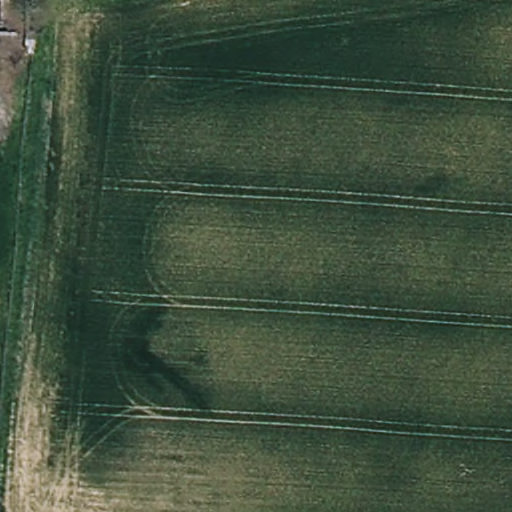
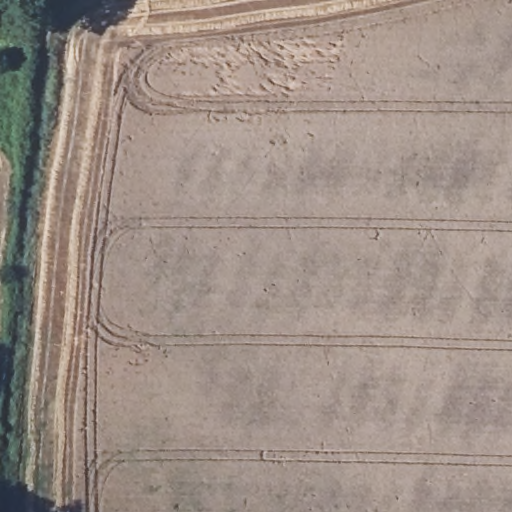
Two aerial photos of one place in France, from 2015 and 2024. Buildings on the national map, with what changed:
[]

